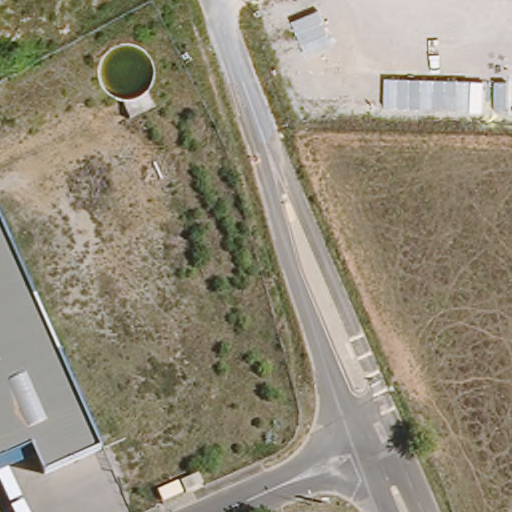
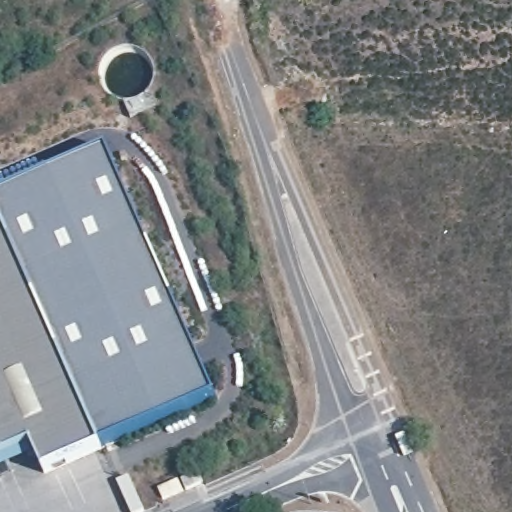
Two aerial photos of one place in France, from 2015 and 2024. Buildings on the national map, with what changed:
new [(213,394),(101,441),(0,227),(0,188),(103,147),(213,394)]
unchanged [(44,469),(31,441),(0,456),(0,227),(102,442),(44,469)]

